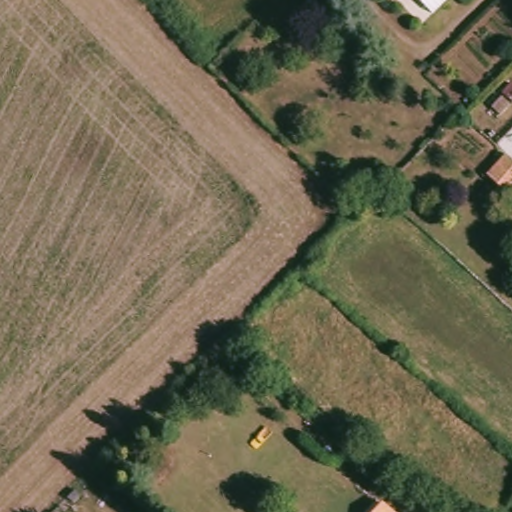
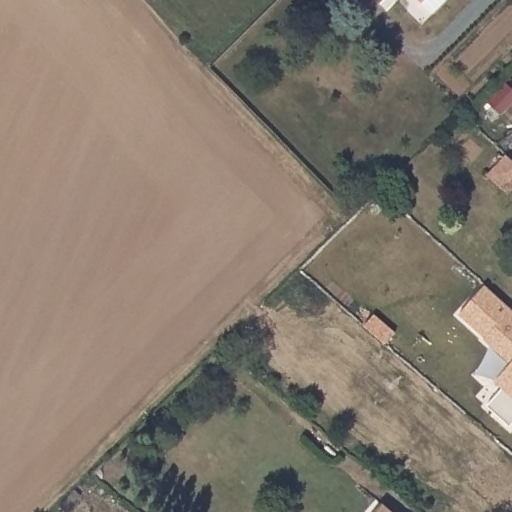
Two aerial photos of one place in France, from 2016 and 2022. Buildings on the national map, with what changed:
unchanged [(427,0),(424,3),(421,0),(427,0)]
unchanged [(512,193),(506,200),(484,180),(502,159),(512,168),(512,193)]
new [(487,406),(502,389),(494,382),(511,364),(483,339),(457,316),(485,285),(512,310),(512,426),(511,427),(487,406)]
unchanged [(384,505),(394,512),(379,512),(384,505)]

